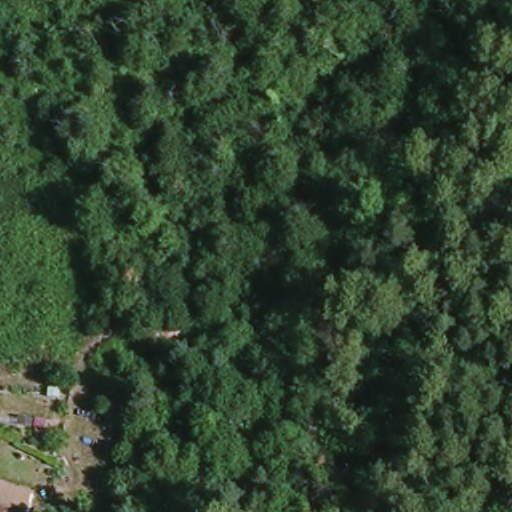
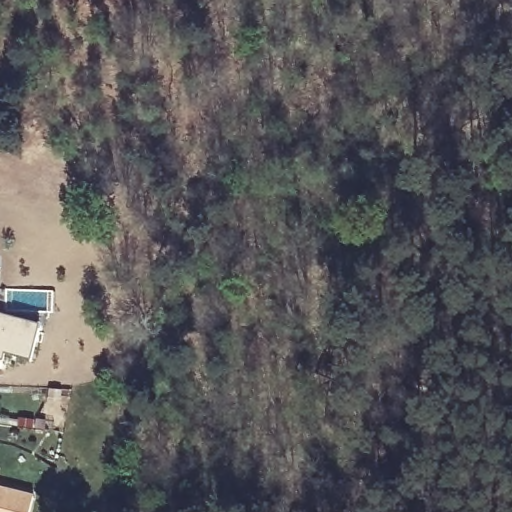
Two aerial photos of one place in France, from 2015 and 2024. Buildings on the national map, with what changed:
new [(31,359),(5,352),(3,369),(0,369),(0,310),(41,321),(31,359)]
unchanged [(31,512),(0,512),(0,488),(35,497),(31,512)]

